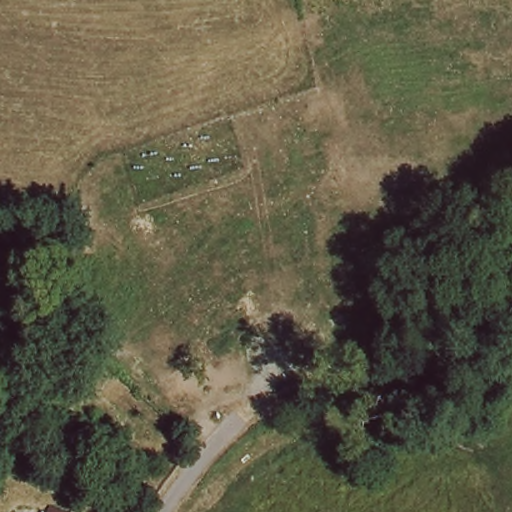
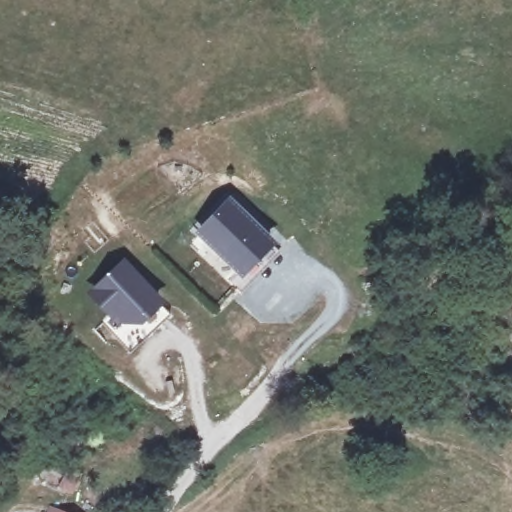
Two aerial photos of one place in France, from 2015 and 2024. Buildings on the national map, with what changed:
new [(230,195),(277,241),(242,280),(195,233),(230,195)]
new [(125,266),(160,303),(141,321),(128,321),(118,310),(114,313),(95,294),(125,266)]

